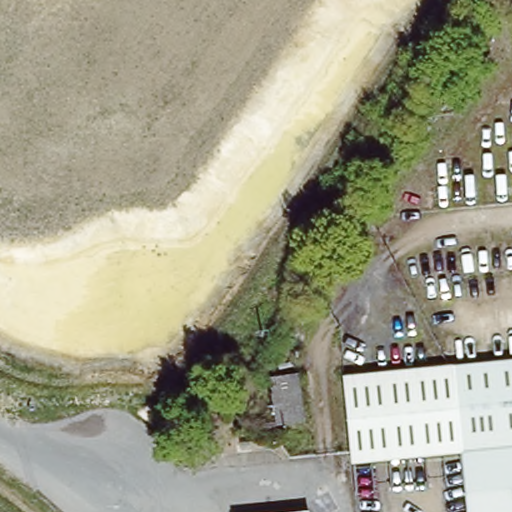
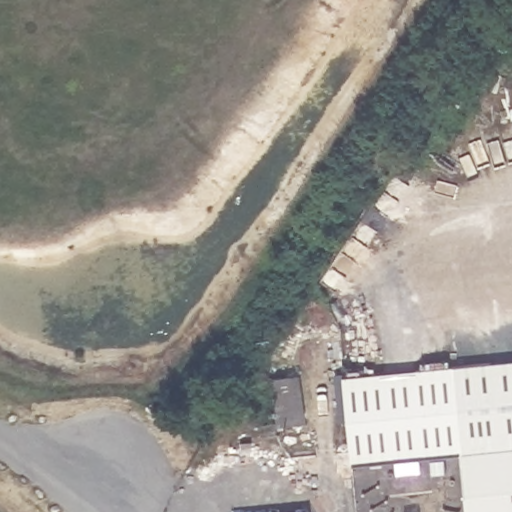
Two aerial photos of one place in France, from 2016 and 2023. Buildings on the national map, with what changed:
unchanged [(474,512),(471,487),(467,456),(456,369),(512,362),(512,512),(474,512)]
unchanged [(350,383),(456,369),(467,456),(361,469),(350,383)]
unchanged [(298,372),(303,421),(277,424),(272,374),(298,372)]

